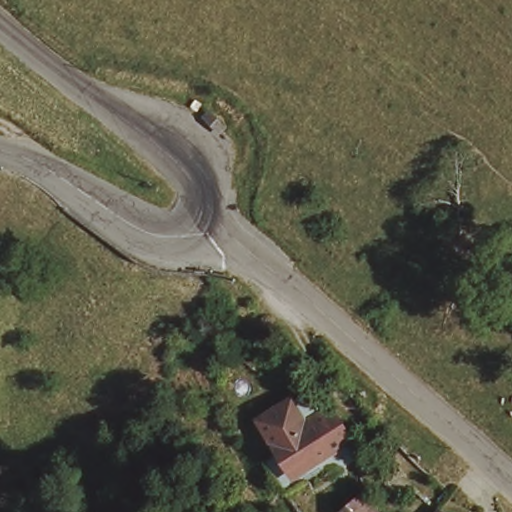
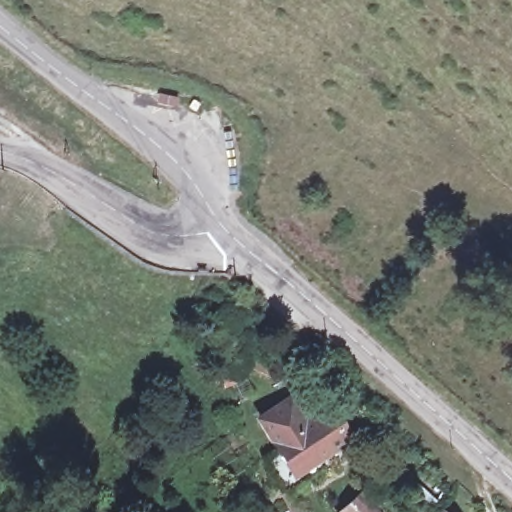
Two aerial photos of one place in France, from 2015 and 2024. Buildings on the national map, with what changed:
unchanged [(293,463),(282,445),(280,439),(263,408),(297,391),(321,378),(334,401),(350,435),(293,463)]
unchanged [(337,512),(329,498),(361,484),(376,512),(337,512)]
unchanged [(453,512),(430,512),(438,501),(453,512)]

